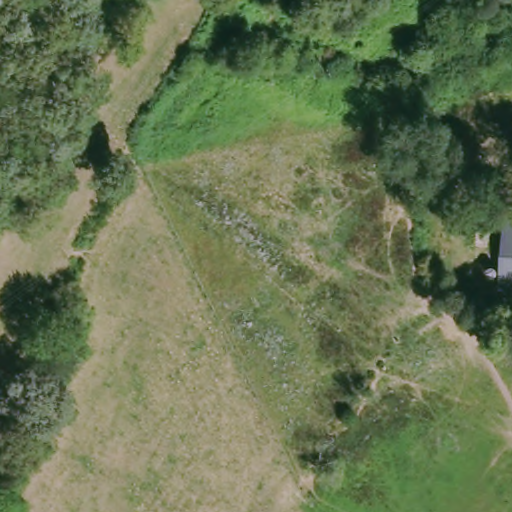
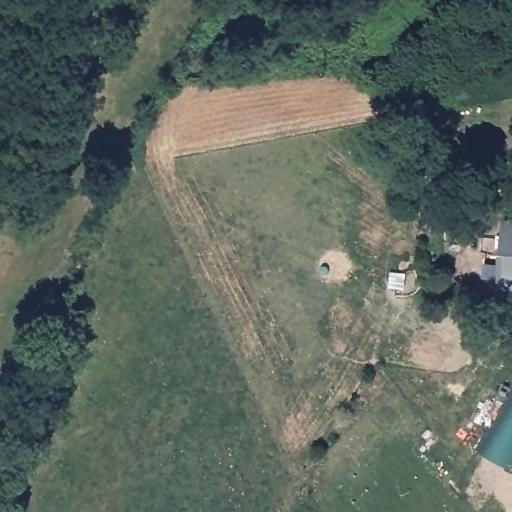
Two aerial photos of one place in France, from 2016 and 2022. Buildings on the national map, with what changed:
unchanged [(508,236),(512,237),(512,304),(504,303),(508,236)]
new [(512,471),(484,457),(512,399),(512,471)]

